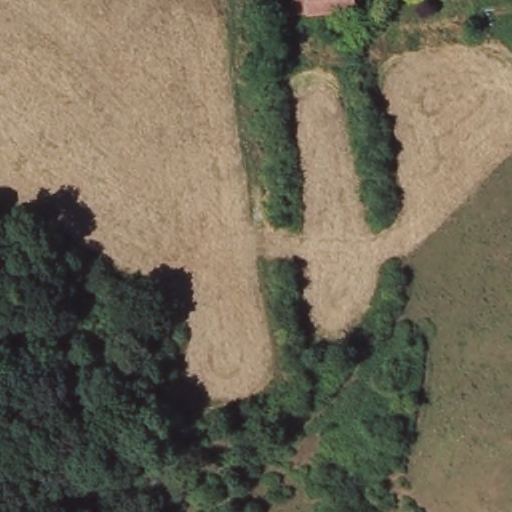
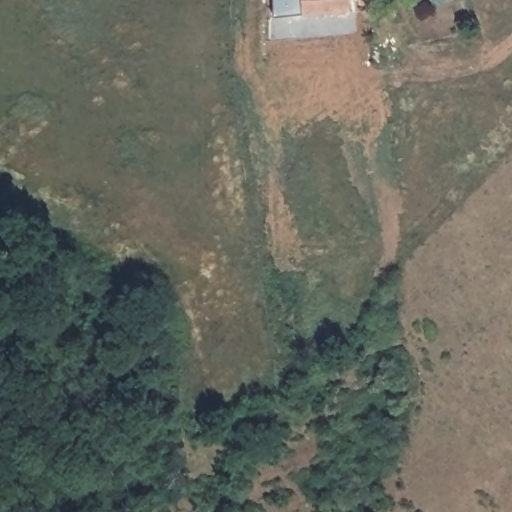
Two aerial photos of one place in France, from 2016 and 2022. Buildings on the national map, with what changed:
unchanged [(353,7),(306,9),(305,0),(352,0),(353,7)]

